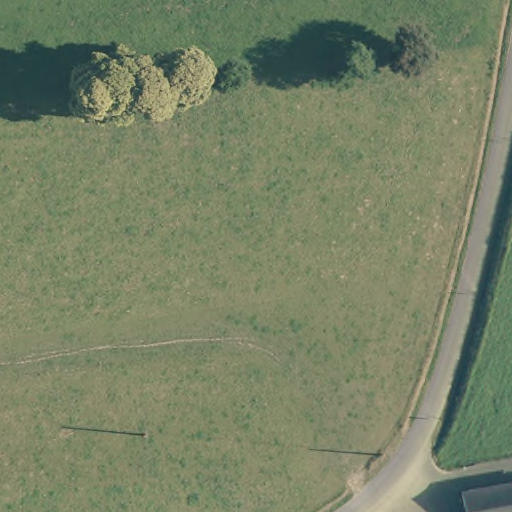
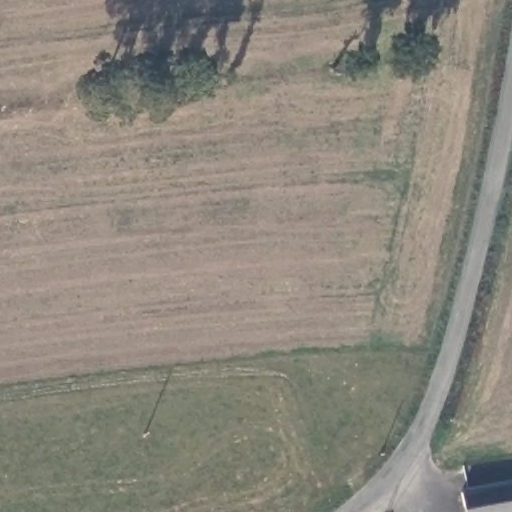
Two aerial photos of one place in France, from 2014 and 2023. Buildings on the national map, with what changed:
unchanged [(467,512),(462,486),(512,477),(512,512),(467,512)]

